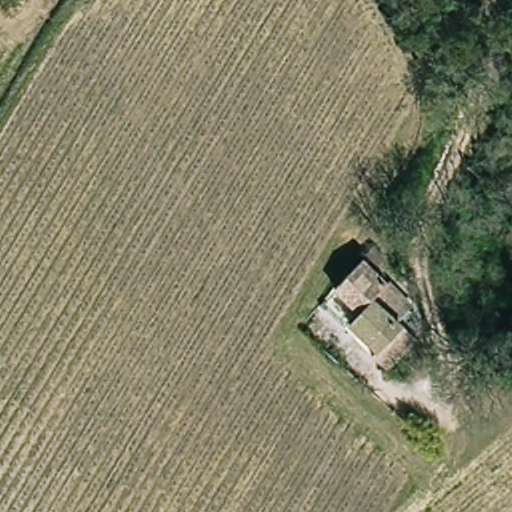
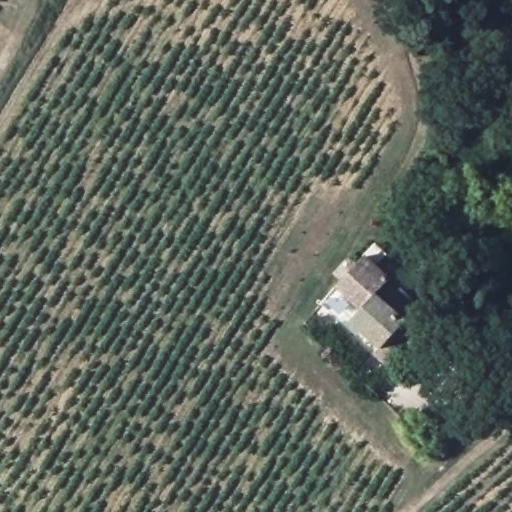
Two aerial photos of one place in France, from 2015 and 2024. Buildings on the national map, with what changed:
unchanged [(366,259),(389,281),(360,310),(338,286),(366,259)]
unchanged [(400,314),(418,328),(384,364),(369,348),(374,342),(351,320),(360,310),(389,281),(410,303),(400,314)]

